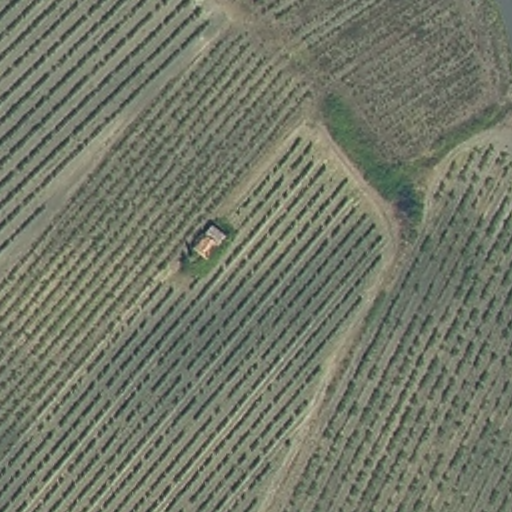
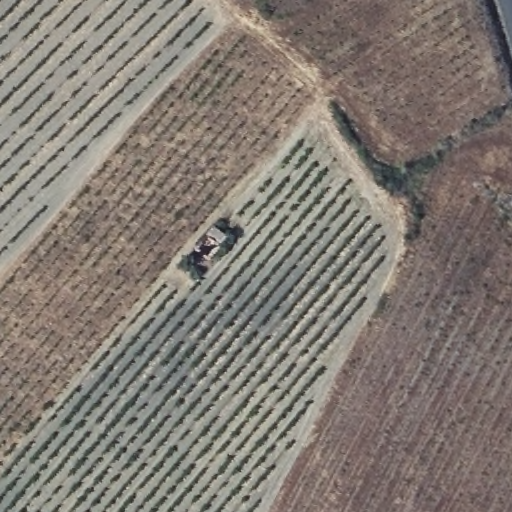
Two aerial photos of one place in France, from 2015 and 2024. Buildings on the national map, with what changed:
unchanged [(193,248),(213,225),(228,237),(208,260),(193,248)]

